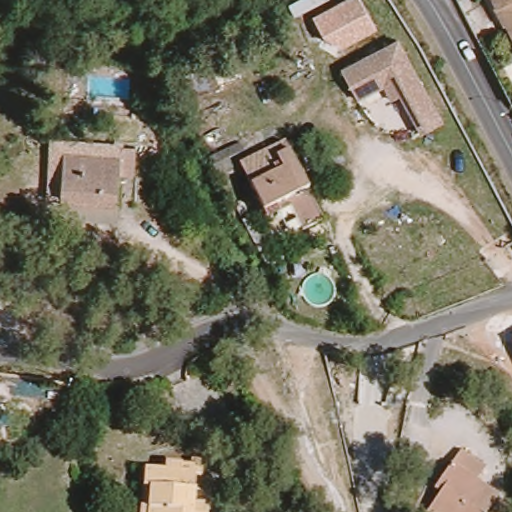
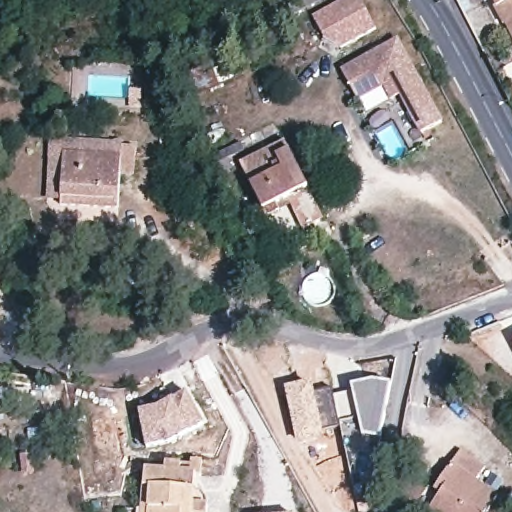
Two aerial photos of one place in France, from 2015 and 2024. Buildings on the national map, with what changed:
unchanged [(342,50),(323,36),(314,17),(346,0),(361,0),(379,30),(342,50)]
unchanged [(500,0),(512,0),(512,23),(500,0)]
unchanged [(384,88),(358,103),(341,74),(396,42),(442,124),(422,135),(400,97),(392,102),(384,88)]
unchanged [(52,196),(56,139),(126,144),(126,156),(68,152),(65,196),(52,196)]
unchanged [(327,217),(307,227),(295,205),(271,216),(245,162),(289,140),(327,217)]
unchanged [(140,145),(139,173),(126,172),(124,207),(65,204),(65,196),(68,152),(126,156),(126,144),(140,145)]
new [(392,381),(380,436),(362,432),(359,415),(340,420),(334,393),(353,389),(352,383),(373,378),(392,381)]
new [(313,383),(316,394),(334,388),(334,393),(340,420),(340,426),(324,432),(325,437),(297,443),(286,389),(313,383)]
new [(157,407),(186,391),(203,422),(170,441),(146,446),(139,411),(157,407)]
unchanged [(433,505),(444,488),(439,484),(445,475),(464,446),(487,462),(479,476),(501,491),(487,512),(428,512),(433,505)]
unchanged [(137,484),(139,468),(158,470),(160,462),(185,465),(186,459),(197,460),(195,478),(188,477),(187,491),(200,505),(199,512),(134,512),(137,484)]

